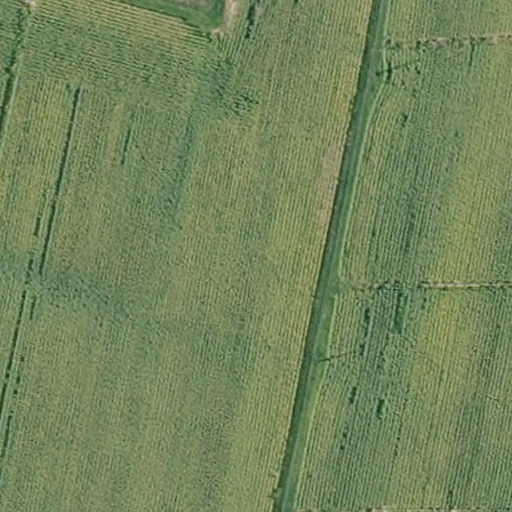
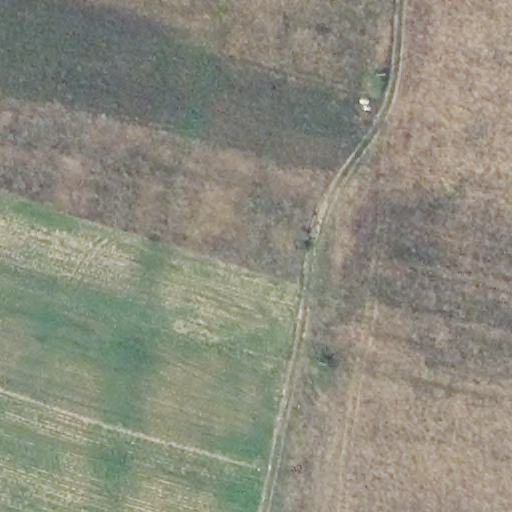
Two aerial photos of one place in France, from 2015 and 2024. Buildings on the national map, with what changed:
[]

